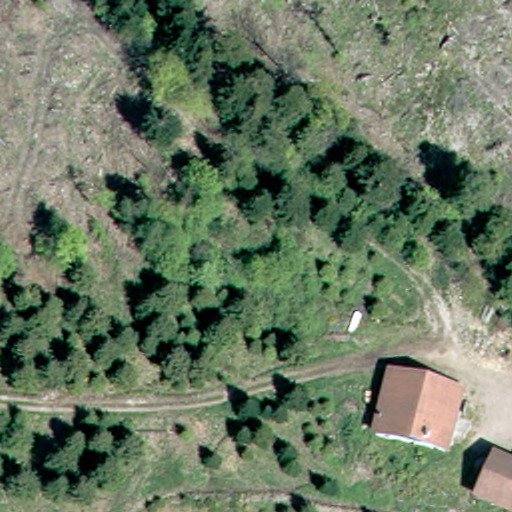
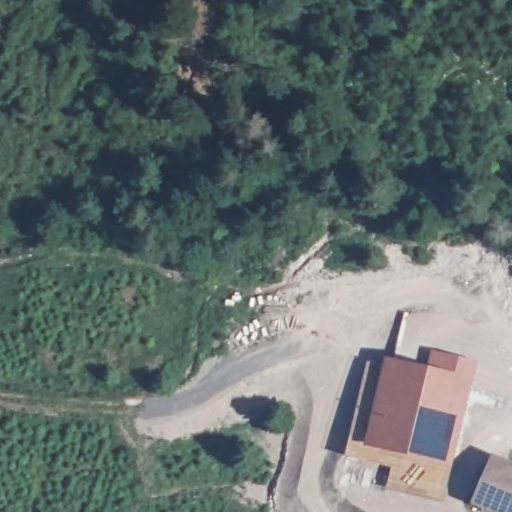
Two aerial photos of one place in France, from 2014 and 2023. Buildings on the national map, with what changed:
unchanged [(447,456),(379,445),(388,382),(431,389),(456,392),(447,456)]
unchanged [(512,466),(512,512),(478,512),(474,510),(497,458),(512,466)]

